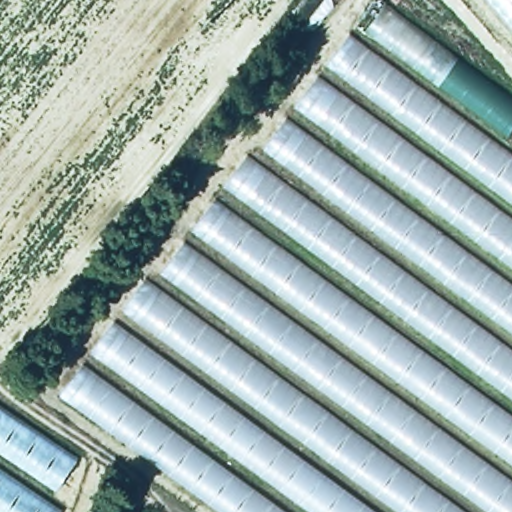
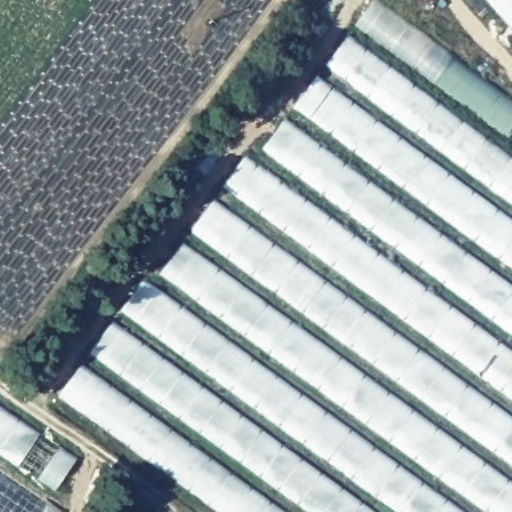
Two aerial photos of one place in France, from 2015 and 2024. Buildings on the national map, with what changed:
unchanged [(151,284),(243,152),(253,163),(371,0),(372,0),(512,99),(512,128),(500,145),(512,154),(512,512),(217,512),(55,393),(140,276),(151,284)]
unchanged [(512,32),(484,0),(512,0),(512,32)]
unchanged [(75,456),(56,512),(0,512),(0,406),(75,456)]

